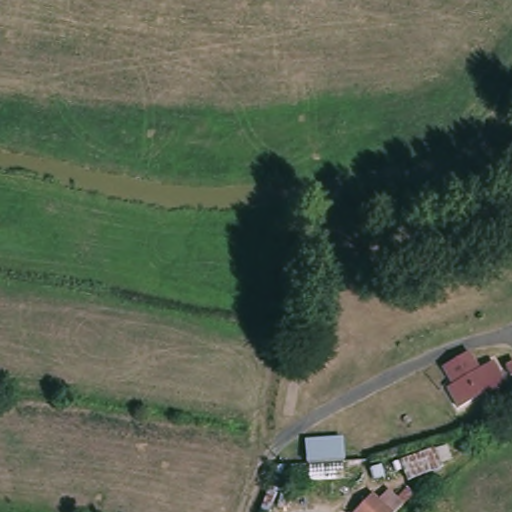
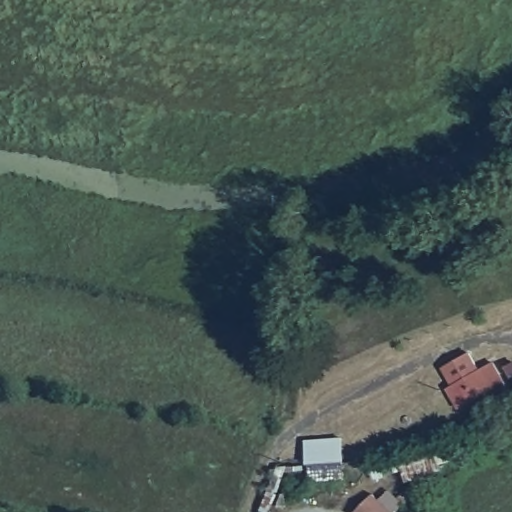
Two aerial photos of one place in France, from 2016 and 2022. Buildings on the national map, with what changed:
unchanged [(484,400),(481,395),(457,408),(446,386),(452,383),(442,367),(470,352),(480,367),(492,360),(508,388),(484,400)]
unchanged [(512,358),(512,365),(503,371),(498,362),(509,353),(512,358)]
unchanged [(343,467),(340,487),(305,488),(303,441),(342,441),(343,467)]
unchanged [(382,493),(391,480),(412,500),(400,512),(354,512),(375,486),(382,493)]

